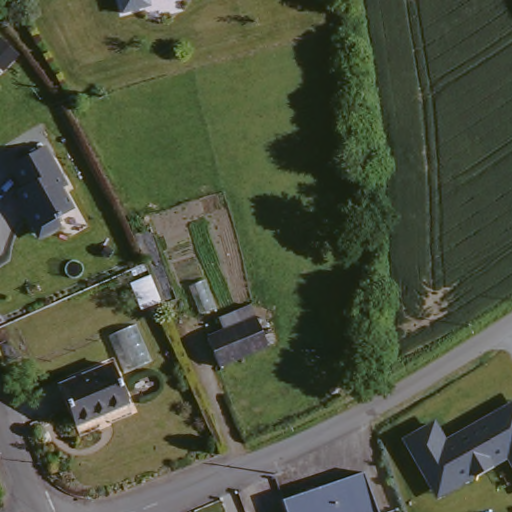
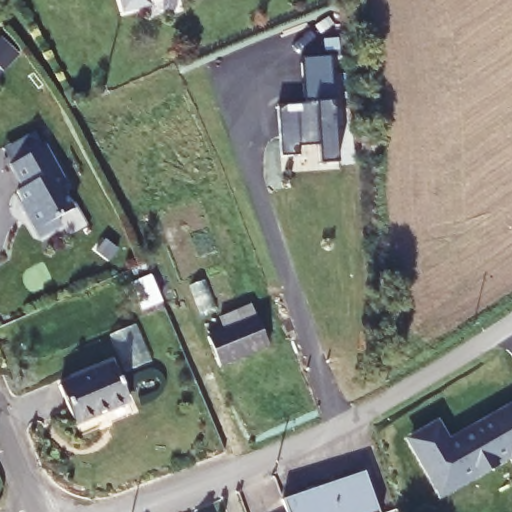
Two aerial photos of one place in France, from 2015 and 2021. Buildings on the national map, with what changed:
unchanged [(121,14),(118,0),(152,0),(153,4),(121,14)]
new [(306,104),(302,59),(331,56),(341,163),(324,164),(321,145),(303,148),(304,157),(284,159),(279,106),(306,104)]
unchanged [(46,144),(66,179),(59,184),(73,209),(39,230),(16,196),(24,189),(11,165),(46,144)]
unchanged [(256,317),(269,348),(218,368),(204,337),(253,319),(256,317)]
unchanged [(106,371),(119,411),(69,429),(58,391),(106,371)]
unchanged [(406,439),(438,419),(449,439),(512,402),(512,465),(509,460),(440,498),(406,439)]
unchanged [(275,503),(360,476),(372,512),(278,512),(275,503)]

